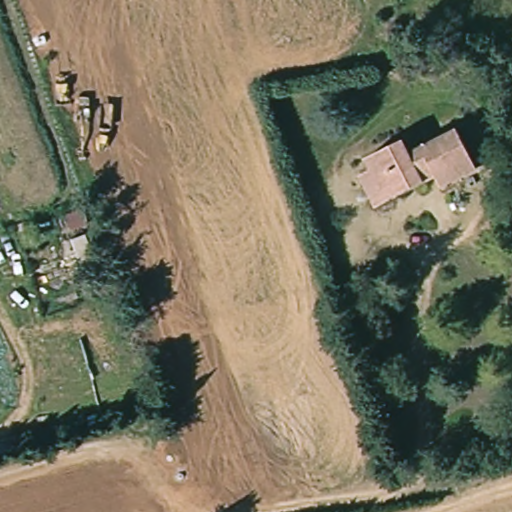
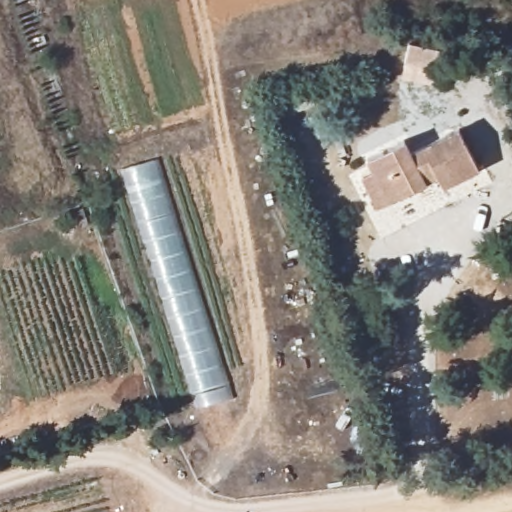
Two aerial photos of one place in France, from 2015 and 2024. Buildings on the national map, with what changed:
unchanged [(439,51),(435,73),(403,66),(409,45),(439,51)]
unchanged [(400,145),(405,155),(453,133),(474,177),(439,194),(432,184),(371,214),(356,181),(366,177),(359,164),(400,145)]
new [(156,156),(230,396),(191,405),(116,167),(156,156)]

